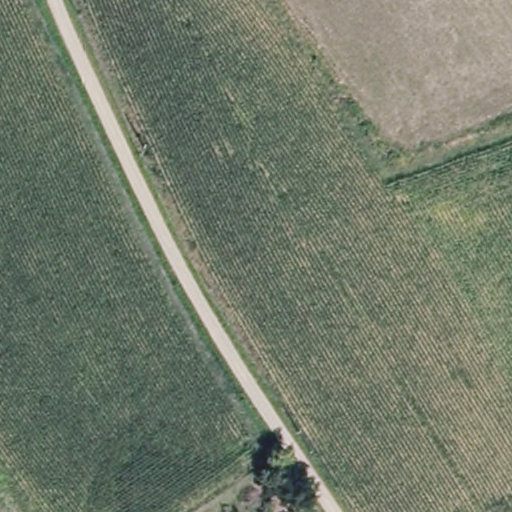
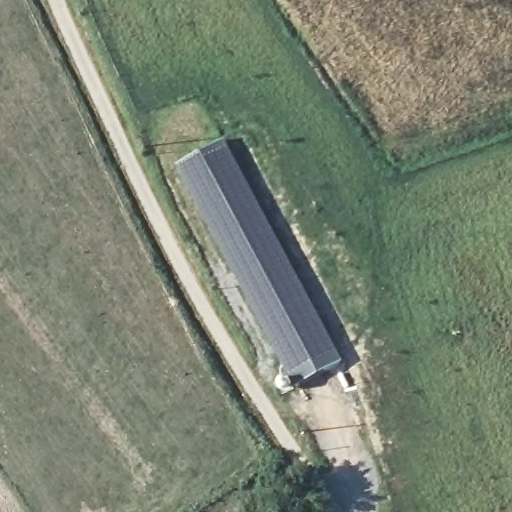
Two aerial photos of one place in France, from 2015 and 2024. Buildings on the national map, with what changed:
new [(225,139),(343,361),(294,387),(265,337),(241,288),(175,166),(225,139)]

